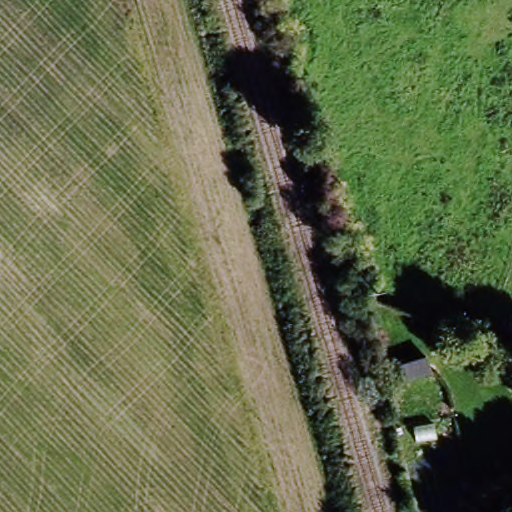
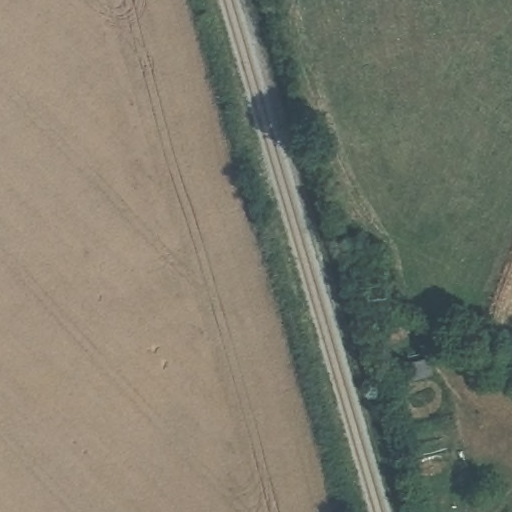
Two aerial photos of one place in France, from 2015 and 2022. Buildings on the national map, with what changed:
unchanged [(429,373),(435,390),(412,396),(408,379),(429,373)]

